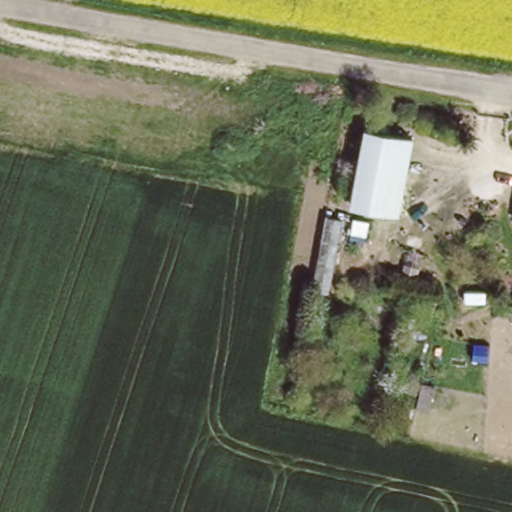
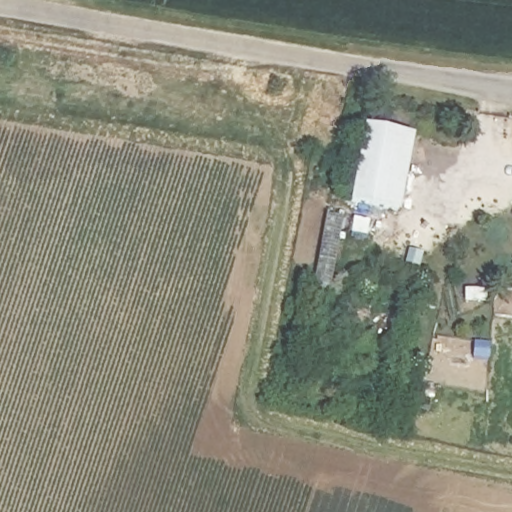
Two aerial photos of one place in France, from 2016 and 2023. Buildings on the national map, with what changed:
unchanged [(415,139),(398,222),(347,212),(364,129),(415,139)]
unchanged [(497,185),(512,187),(512,211),(493,209),(497,185)]

